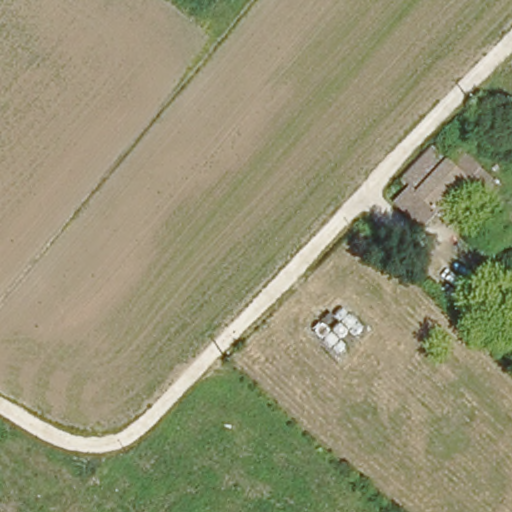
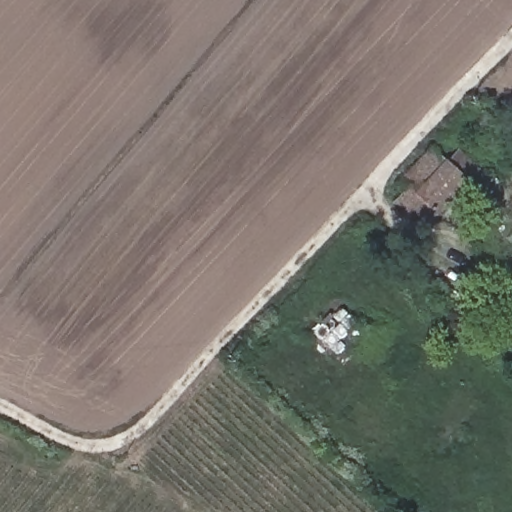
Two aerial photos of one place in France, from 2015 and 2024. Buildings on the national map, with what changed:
unchanged [(432,147),(448,162),(458,151),(488,179),(479,189),(467,178),(437,212),(435,211),(420,226),(395,202),(407,189),(399,182),(400,181),(432,147)]
unchanged [(342,308),(362,327),(354,335),(348,330),(339,340),(344,345),(336,352),(314,331),(322,323),(330,331),(339,322),(334,317),(342,308)]

